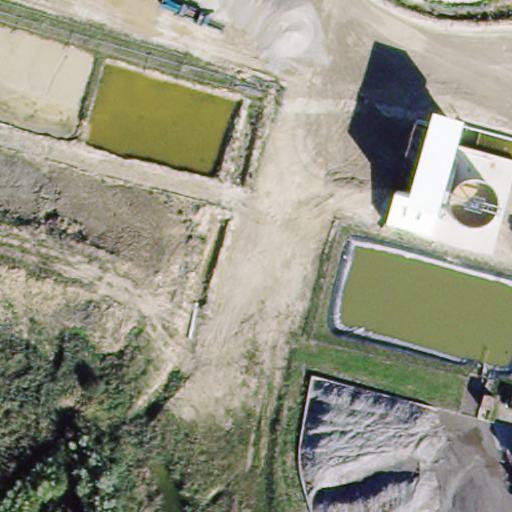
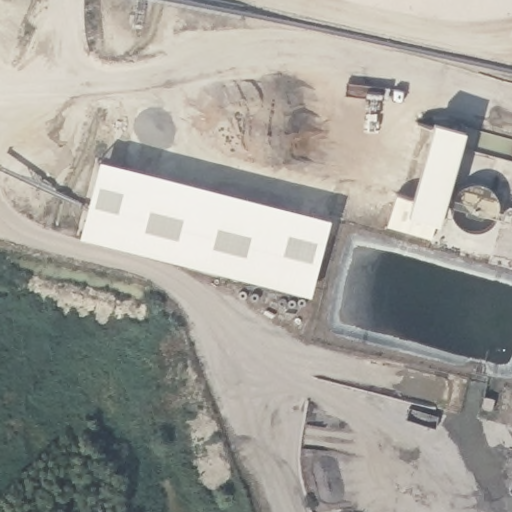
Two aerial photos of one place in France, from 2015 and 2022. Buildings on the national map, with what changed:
unchanged [(395,194),(408,198),(431,118),(464,127),(436,222),(432,237),(386,227),(395,194)]
new [(331,217),(310,296),(79,237),(96,156),(331,217)]

